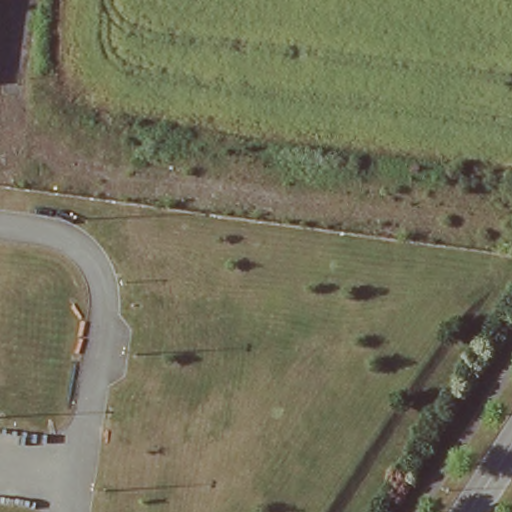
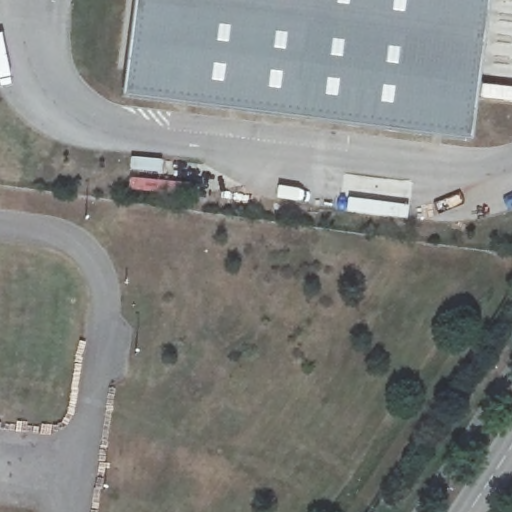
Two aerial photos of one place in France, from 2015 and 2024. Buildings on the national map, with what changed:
new [(122,96),(134,0),(491,0),(474,141),(122,96)]

